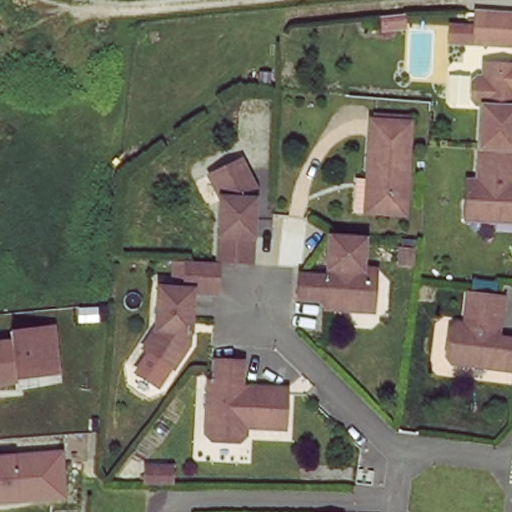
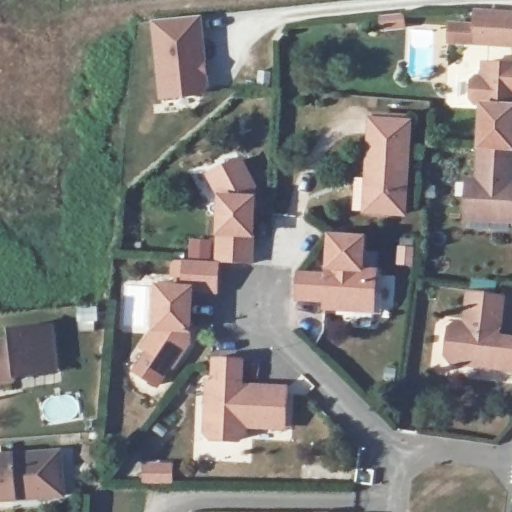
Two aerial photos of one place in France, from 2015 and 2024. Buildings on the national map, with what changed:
unchanged [(476,11),(512,13),(512,43),(485,41),(474,41),(475,26),(476,11)]
new [(202,16),(209,87),(200,95),(159,99),(152,20),(202,16)]
unchanged [(488,101),(482,101),(478,96),(478,81),(483,76),(489,76),(490,62),(512,63),(512,148),(485,146),(488,101)]
unchanged [(404,212),(369,210),(371,177),(368,176),(371,119),(409,121),(404,212)]
unchanged [(484,179),(485,146),(512,148),(512,218),(471,215),(472,195),(473,178),(480,179),(484,179)]
unchanged [(215,175),(221,171),(246,160),(259,188),(254,264),(221,262),(226,197),(215,175)]
unchanged [(355,308),(332,307),(325,306),(325,299),(298,297),(300,273),(327,275),(330,232),(365,235),(363,268),(375,269),(373,302),(372,310),(355,308)]
unchanged [(159,327),(162,286),(187,288),(189,260),(221,262),(220,291),(195,290),(191,342),(175,366),(152,351),(146,347),(159,327)]
unchanged [(498,337),(512,338),(512,368),(453,360),(447,353),(450,328),(457,322),(465,323),(470,290),(503,294),(498,337)]
unchanged [(10,338),(9,330),(57,325),(61,375),(19,377),(19,384),(0,386),(0,339),(10,338)]
unchanged [(245,360),(243,386),(289,390),(286,428),(247,426),(246,435),(240,440),(214,439),(208,432),(211,385),(214,385),(214,371),(215,358),(245,360)]
unchanged [(17,455),(63,451),(68,497),(19,501),(0,503),(0,456),(17,455)]
unchanged [(143,466),(171,466),(170,484),(143,484),(143,466)]
unchanged [(344,512),(321,512),(321,511),(345,511),(344,512)]

